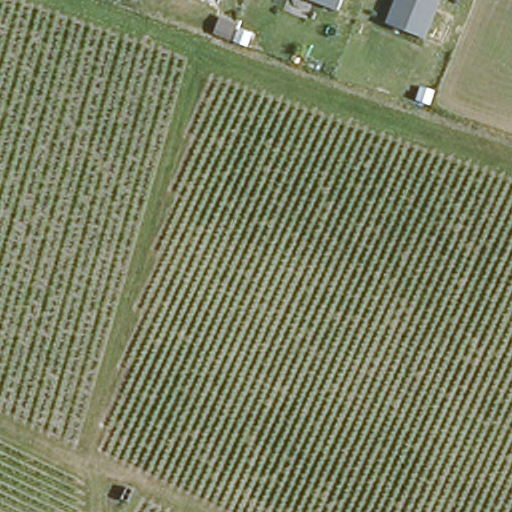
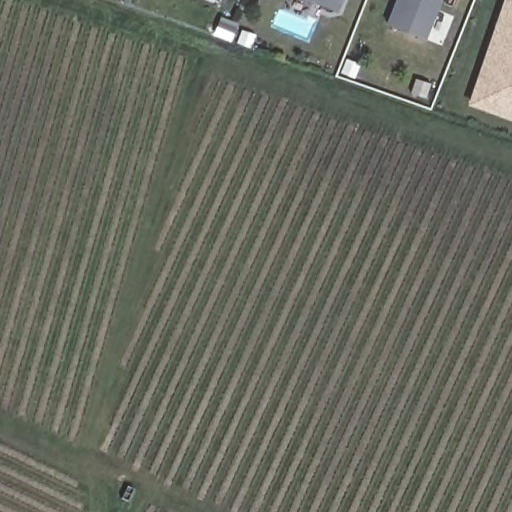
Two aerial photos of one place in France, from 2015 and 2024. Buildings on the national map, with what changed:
unchanged [(336,12),(304,0),(342,0),(336,12)]
unchanged [(424,38),(385,23),(395,0),(441,0),(424,38)]
new [(505,0),(512,0),(512,118),(470,104),(505,0)]

